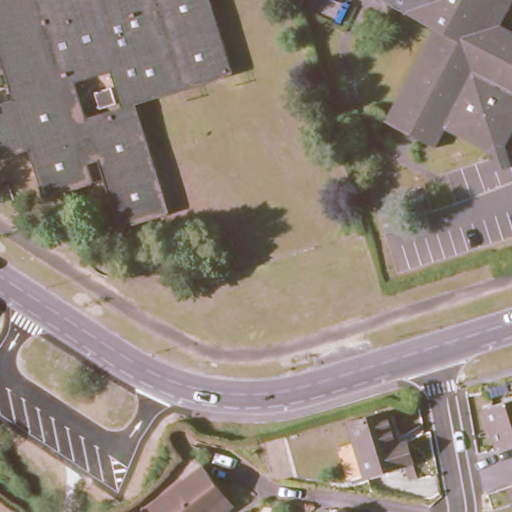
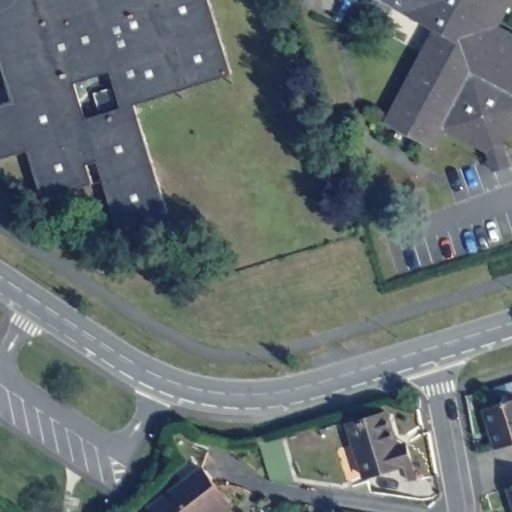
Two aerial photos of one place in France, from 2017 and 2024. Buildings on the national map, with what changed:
unchanged [(237,74),(140,102),(173,212),(122,226),(102,159),(90,162),(96,184),(46,197),(32,149),(0,160),(0,102),(15,97),(0,49),(0,0),(214,0),(237,74)]
unchanged [(490,152),(445,129),(437,146),(389,122),(436,25),(407,11),(385,0),(512,0),(512,5),(502,25),(512,30),(512,134),(506,146),(509,153),(512,161),(512,166),(495,172),(492,157),(490,152)]
unchanged [(512,396),(512,438),(497,443),(485,403),(512,396)]
unchanged [(410,465),(366,478),(350,425),(389,414),(398,447),(404,445),(409,443),(415,464),(410,465)]
unchanged [(202,469),(232,507),(226,512),(152,512),(150,509),(202,469)]
unchanged [(510,481),(512,481),(512,490),(510,481)]

